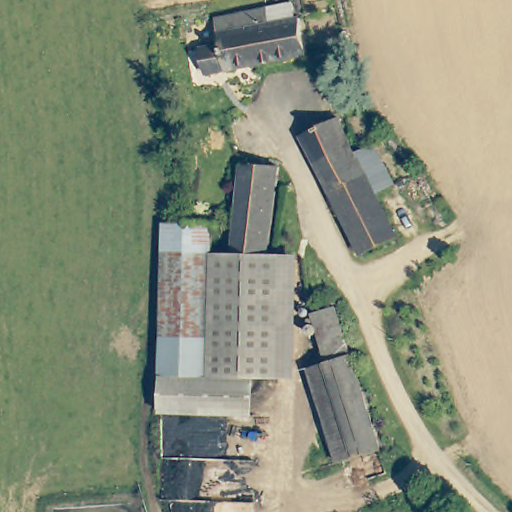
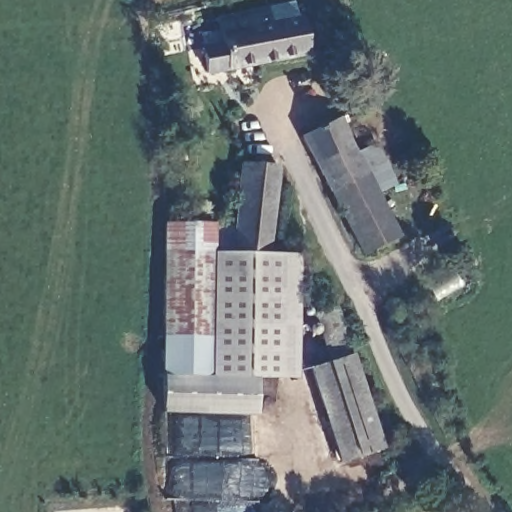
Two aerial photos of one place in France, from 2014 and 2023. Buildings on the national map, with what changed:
unchanged [(295,9),(295,26),(305,28),(305,63),(201,66),(200,39),(215,39),(214,9),(295,9)]
unchanged [(370,172),(332,191),(330,192),(304,138),(343,119),(370,172)]
unchanged [(240,160),(276,161),(270,261),(236,259),(240,160)]
unchanged [(400,232),(361,252),(332,191),(370,172),(400,232)]
unchanged [(171,220),(219,224),(217,257),(169,254),(171,220)]
unchanged [(217,257),(236,259),(270,261),(283,262),(277,378),(253,381),(250,420),(159,416),(169,254),(217,257)]
unchanged [(376,448),(332,458),(312,366),(329,363),(319,318),(346,312),(376,448)]

